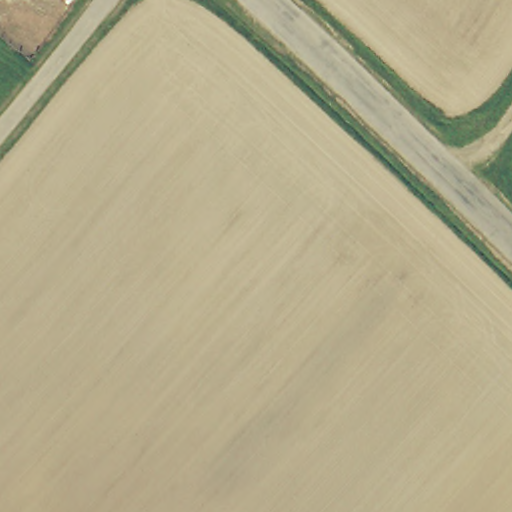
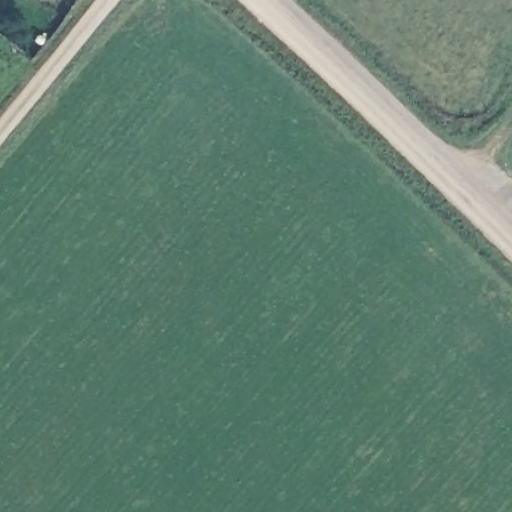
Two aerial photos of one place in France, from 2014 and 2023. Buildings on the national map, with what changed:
[]

